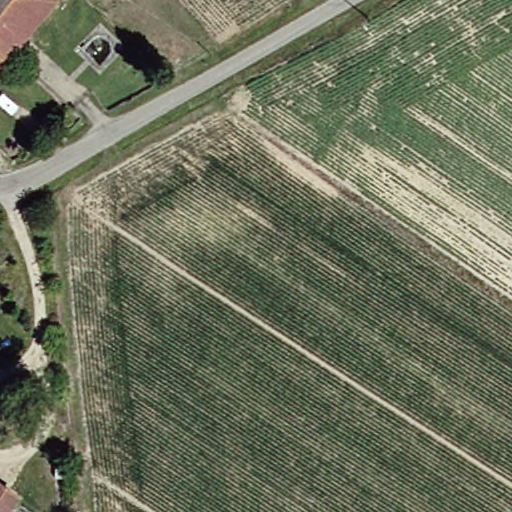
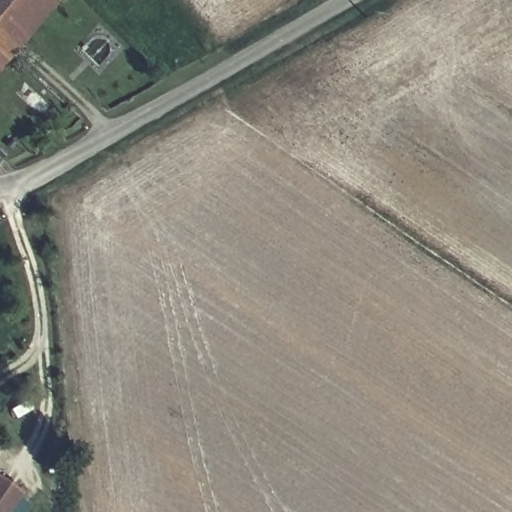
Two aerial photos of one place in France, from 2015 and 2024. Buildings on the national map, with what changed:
unchanged [(29,29),(16,20),(0,40),(0,0),(54,0),(29,29)]
unchanged [(29,29),(0,65),(0,40),(16,20),(29,29)]
unchanged [(7,512),(0,512),(0,478),(20,492),(7,512)]

